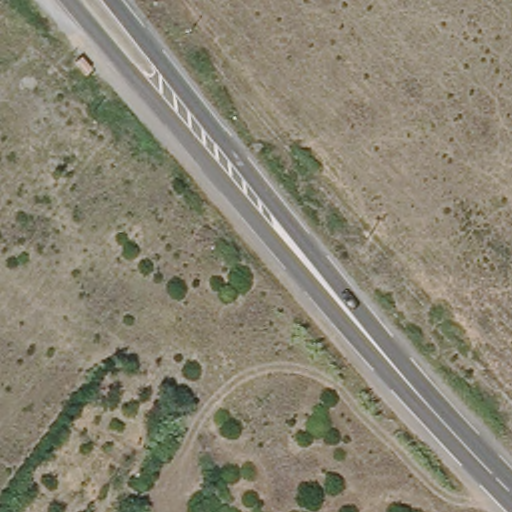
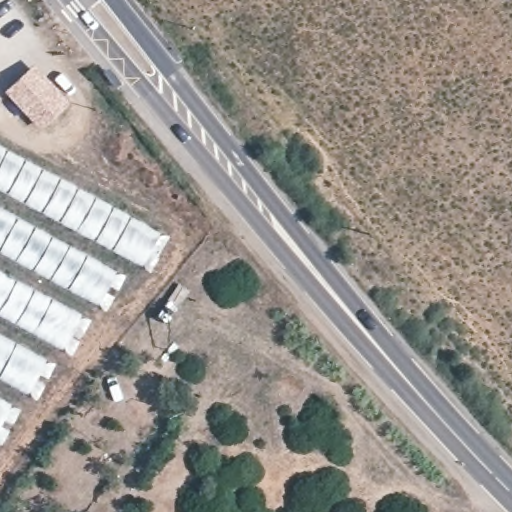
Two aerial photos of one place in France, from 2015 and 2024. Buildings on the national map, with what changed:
new [(66,103),(40,125),(12,94),(36,72),(66,103)]
new [(160,230),(144,267),(0,189),(0,145),(160,230)]
new [(118,273),(101,308),(0,254),(0,210),(118,273)]
new [(87,320),(69,355),(0,318),(0,273),(87,320)]
new [(54,363),(35,400),(0,382),(0,334),(54,363)]
new [(15,405),(0,432),(0,397),(15,405)]

